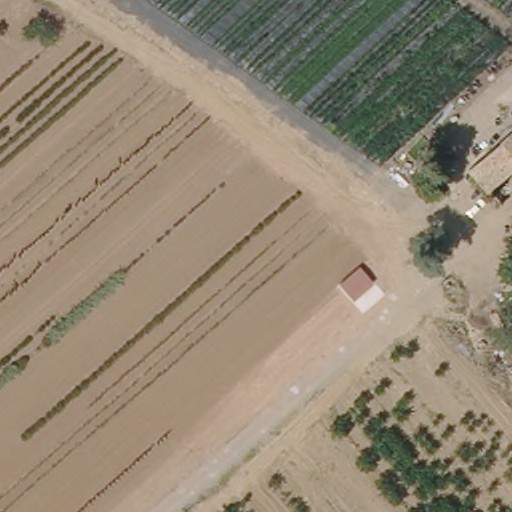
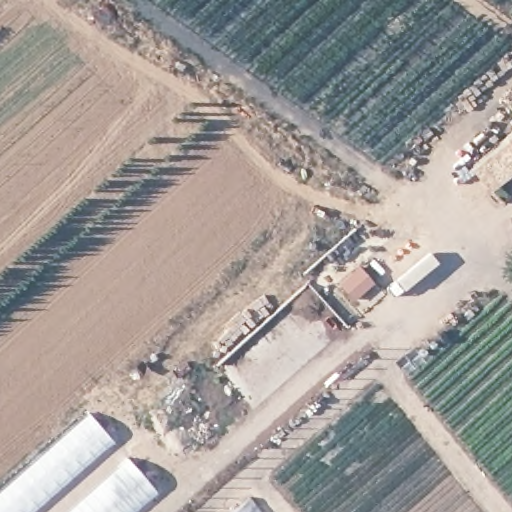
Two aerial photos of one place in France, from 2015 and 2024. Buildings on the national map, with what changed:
unchanged [(466,150),(512,113),(512,154),(487,175),(466,150)]
new [(360,265),(373,280),(353,297),(341,282),(360,265)]
new [(25,468),(89,413),(114,442),(31,512),(0,512),(0,492),(8,486),(25,468)]
new [(157,492),(135,512),(65,512),(127,456),(157,492)]
new [(250,495),(264,512),(229,512),(250,495)]

